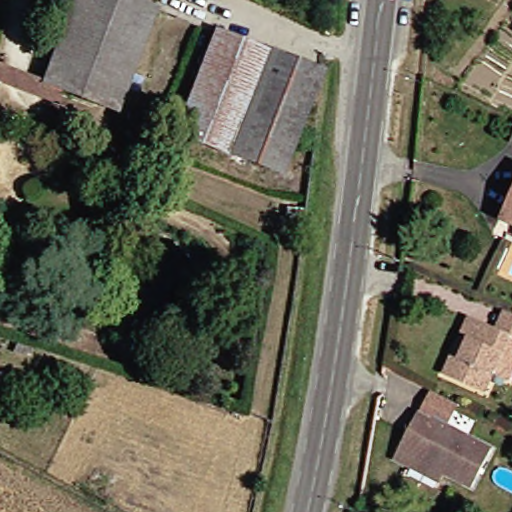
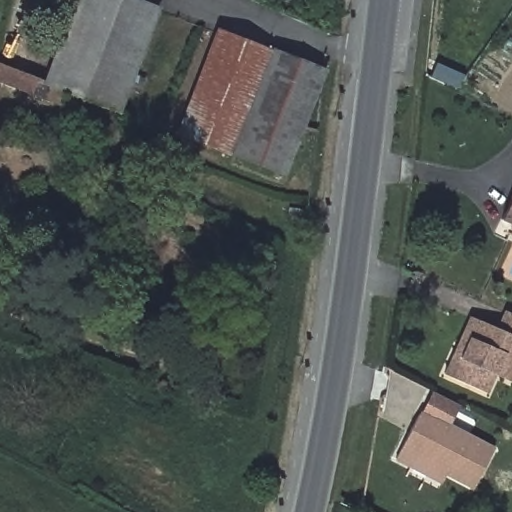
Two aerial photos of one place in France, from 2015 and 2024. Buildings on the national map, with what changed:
unchanged [(55,92),(33,84),(34,81),(64,0),(125,0),(147,9),(109,112),(55,92)]
unchanged [(172,134),(212,32),(264,52),(265,49),(318,70),(317,73),(278,174),(225,154),(172,134)]
unchanged [(49,106),(0,87),(0,68),(34,81),(33,84),(55,92),(49,106)]
unchanged [(486,89),(499,98),(494,105),(481,98),(486,89)]
unchanged [(502,141),(510,121),(512,122),(512,146),(502,141)]
unchanged [(491,220),(512,174),(512,230),(491,220)]
unchanged [(478,394),(436,376),(444,357),(460,318),(467,321),(488,330),(496,310),(512,318),(512,356),(507,367),(501,382),(486,376),(478,394)]
unchanged [(401,466),(385,458),(408,414),(410,414),(421,392),(440,402),(449,406),(439,426),(483,449),(463,488),(435,474),(431,482),(401,466)]

